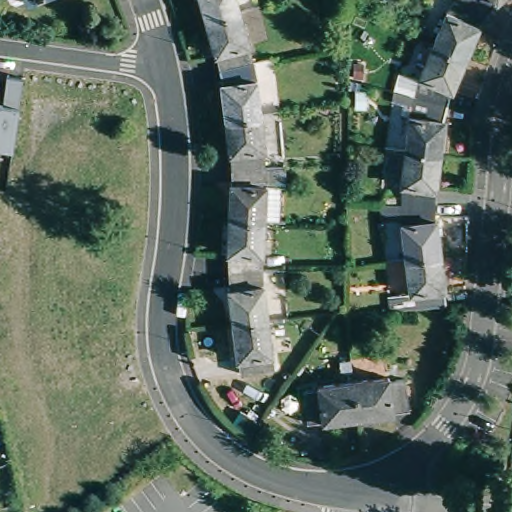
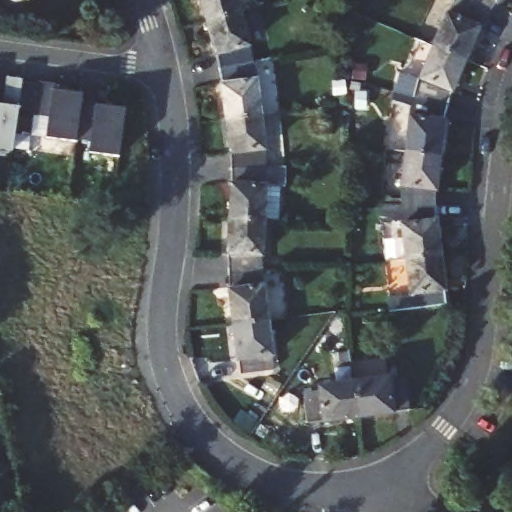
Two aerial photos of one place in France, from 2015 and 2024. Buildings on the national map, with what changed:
unchanged [(237,1),(204,10),(201,0),(237,0),(237,1)]
unchanged [(447,4),(450,0),(493,0),(488,6),(479,17),(465,49),(456,45),(433,35),(447,4)]
unchanged [(220,74),(217,60),(214,44),(204,10),(237,1),(247,35),(250,53),(255,69),(259,104),(255,104),(224,108),(220,74)]
unchanged [(405,141),(410,107),(415,87),(420,68),(433,35),(456,45),(465,49),(452,81),(449,96),(444,112),(440,145),(417,143),(405,141)]
unchanged [(0,150),(0,103),(2,103),(4,77),(22,78),(19,105),(13,151),(0,150)]
new [(119,158),(89,154),(90,139),(77,136),(77,142),(47,139),(49,121),(32,118),(37,81),(82,86),(80,105),(90,107),(91,104),(124,109),(119,158)]
unchanged [(227,261),(227,245),(229,208),(231,175),(230,158),(229,143),(224,108),(255,104),(259,104),(262,139),(264,157),(282,157),(282,175),(278,175),(277,211),(264,210),(262,246),(262,260),(263,275),(267,308),(232,312),(228,279),(227,261)]
unchanged [(405,250),(401,214),(401,196),(401,178),(405,141),(417,143),(440,145),(435,181),(435,196),(435,210),(440,246),(430,247),(405,250)]
unchanged [(410,299),(409,285),(405,250),(430,247),(440,246),(444,281),(445,295),(410,299)]
unchanged [(238,364),(236,348),(232,312),(267,308),(271,344),(273,360),(238,364)]
unchanged [(357,417),(353,387),(388,382),(404,380),(409,412),(392,414),(357,419),(357,417)]
unchanged [(302,394),(317,392),(353,387),(357,417),(357,419),(322,424),(306,426),(302,394)]

